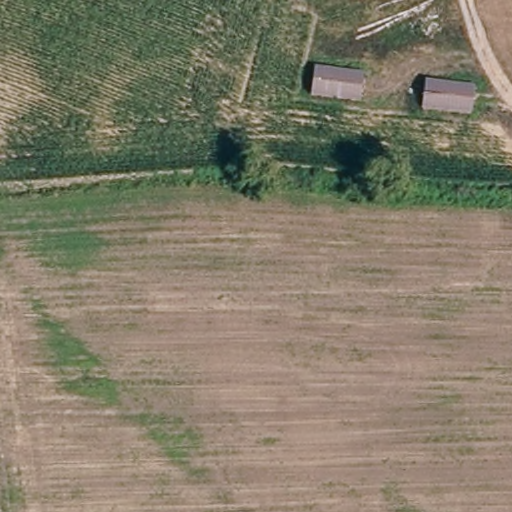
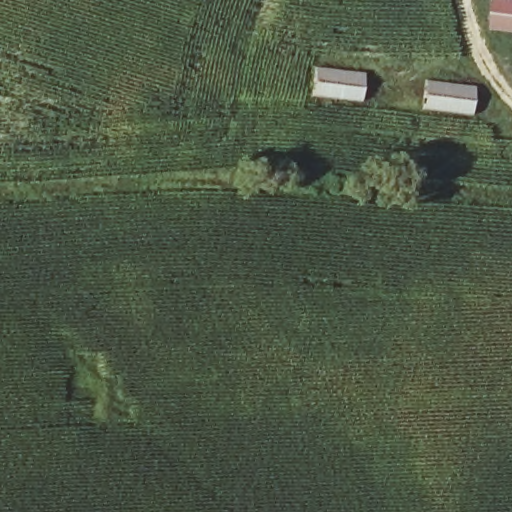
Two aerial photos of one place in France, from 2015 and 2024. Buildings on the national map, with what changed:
new [(512,33),(492,31),(495,0),(512,0),(512,33)]
unchanged [(313,64),(367,68),(363,102),(310,99),(313,64)]
unchanged [(426,76),(479,81),(474,117),(422,110),(426,76)]

